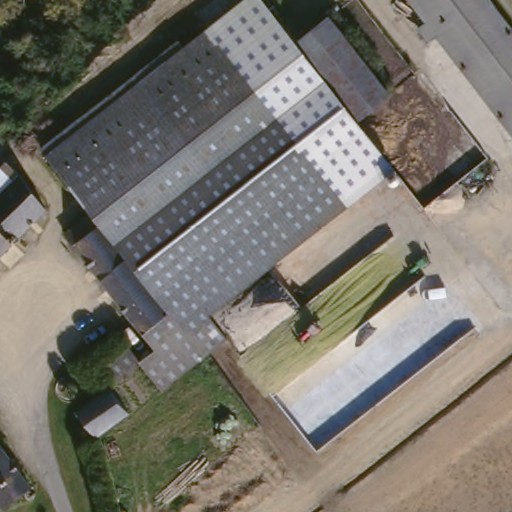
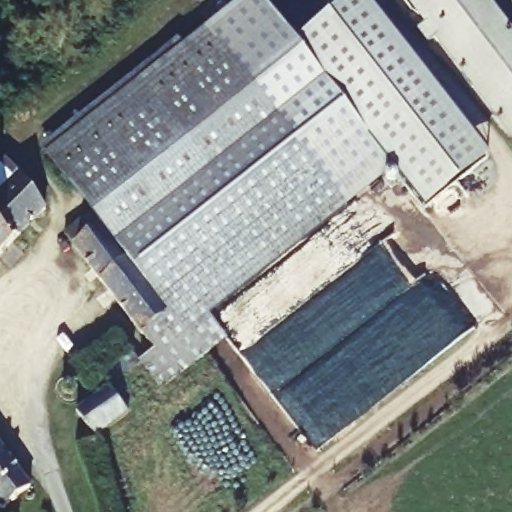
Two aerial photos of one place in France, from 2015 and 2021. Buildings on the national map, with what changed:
new [(350,0),(366,0),(492,157),(427,211),(393,170),(355,123),(293,46),(350,0)]
unchanged [(512,37),(512,136),(408,0),(484,0),(512,37)]
unchanged [(262,2),(292,44),(355,123),(393,170),(341,209),(239,76),(209,41),(262,2)]
unchanged [(50,167),(209,41),(239,76),(78,203),(50,167)]
unchanged [(186,338),(95,224),(78,203),(239,76),(341,209),(210,319),(186,338)]
unchanged [(0,173),(3,170),(16,181),(48,209),(0,259),(0,173)]
unchanged [(160,358),(69,245),(95,224),(186,338),(160,358)]
unchanged [(158,384),(147,371),(160,358),(186,338),(210,319),(225,339),(162,390),(158,384)]
unchanged [(154,388),(132,407),(131,405),(121,393),(142,375),(154,388)]
unchanged [(105,389),(117,404),(125,414),(95,437),(74,412),(105,389)]
unchanged [(0,508),(0,451),(27,488),(0,508)]

